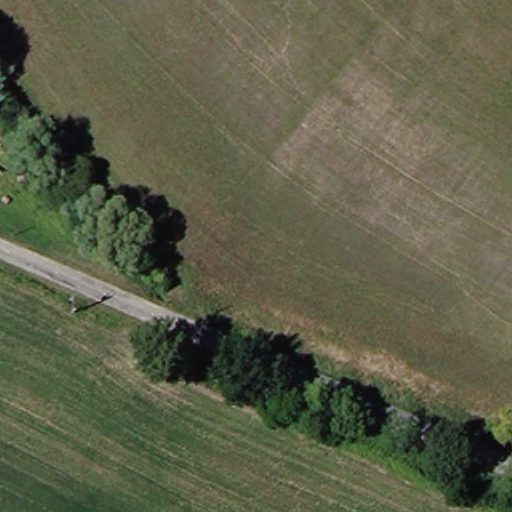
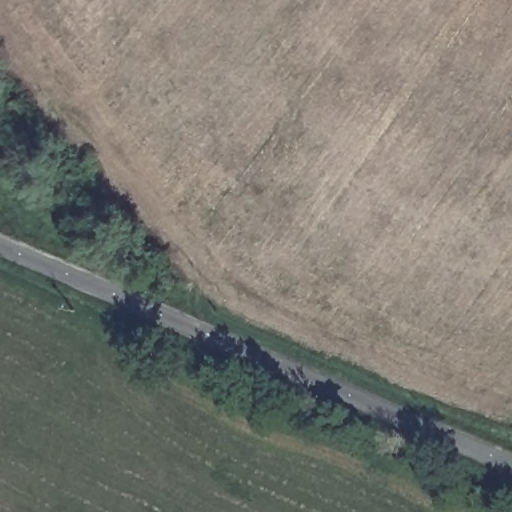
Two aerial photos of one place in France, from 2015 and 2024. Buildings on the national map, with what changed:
[]

